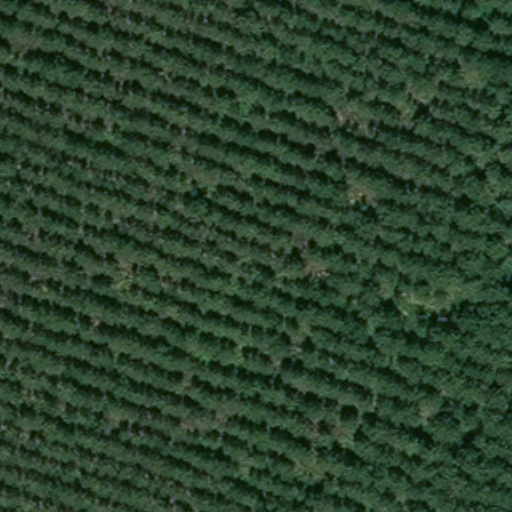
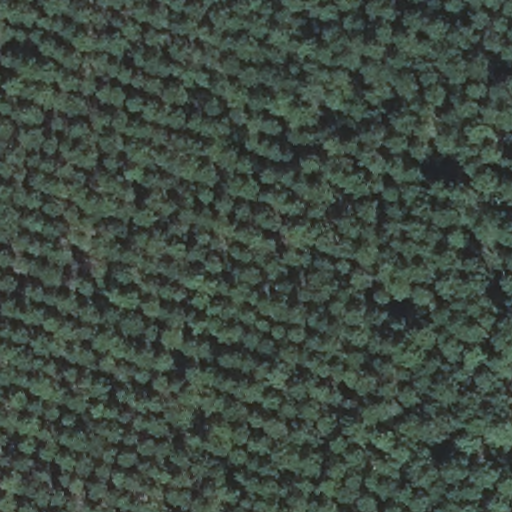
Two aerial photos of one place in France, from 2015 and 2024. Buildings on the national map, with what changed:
[]

